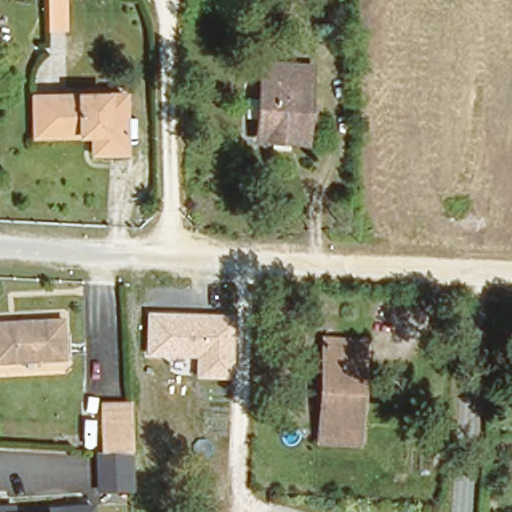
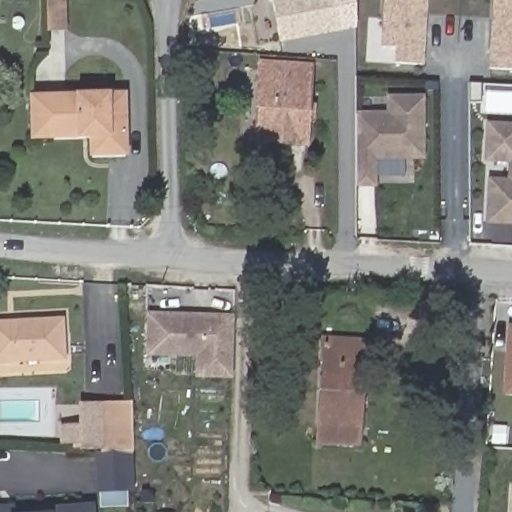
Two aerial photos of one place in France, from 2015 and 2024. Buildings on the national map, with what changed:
unchanged [(45,33),(45,0),(67,0),(68,34),(45,33)]
new [(280,43),(272,0),(356,0),(357,27),(280,43)]
new [(380,46),(383,0),(428,0),(424,64),(394,62),(395,47),(380,46)]
new [(512,0),(512,70),(489,68),(493,0),(512,0)]
unchanged [(309,116),(309,124),(307,128),(300,134),(295,135),(259,131),(266,58),(314,63),(311,100),(309,116)]
unchanged [(124,140),(91,143),(89,125),(48,128),(33,129),(30,89),(44,88),(121,83),(124,140)]
new [(424,159),(376,161),(376,186),(357,186),(356,110),(386,109),(386,95),(423,94),(424,159)]
new [(487,177),(507,178),(507,162),(484,161),(485,120),(512,121),(512,226),(485,224),(487,177)]
unchanged [(512,296),(512,314),(504,312),(503,322),(485,321),(486,294),(512,296)]
unchanged [(233,378),(196,379),(196,359),(147,356),(149,312),(233,315),(233,378)]
unchanged [(62,320),(61,358),(0,355),(0,317),(62,320)]
new [(512,325),(512,392),(508,391),(512,325)]
unchanged [(324,334),(362,338),(360,372),(354,372),(352,400),(357,401),(356,424),(355,439),(315,436),(316,421),(324,334)]
unchanged [(97,451),(94,396),(130,393),(136,449),(97,451)]
unchanged [(136,449),(136,490),(91,491),(89,451),(97,451),(136,449)]
new [(512,485),(512,512),(511,512),(512,485)]
demolished [(253,496),(253,511),(242,510),(242,496),(253,496)]
unchanged [(93,501),(93,512),(0,512),(0,505),(93,501)]

